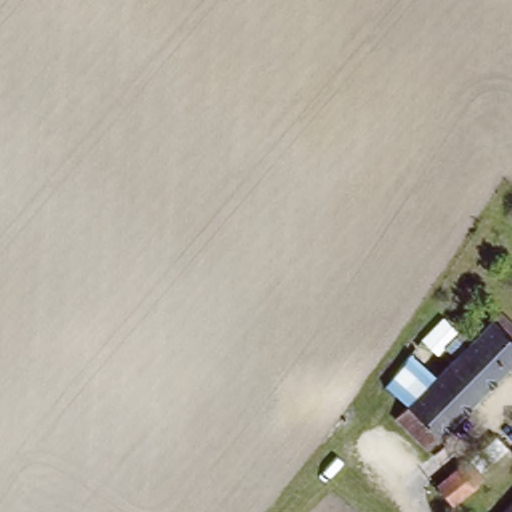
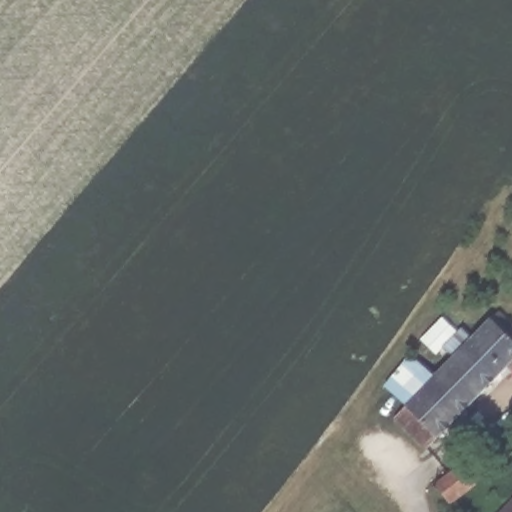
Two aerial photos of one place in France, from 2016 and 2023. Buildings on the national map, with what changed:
unchanged [(413,456),(383,426),(486,323),(512,344),(512,366),(507,362),(413,456)]
unchanged [(462,465),(478,488),(449,509),(431,488),(462,465)]
unchanged [(512,501),(512,512),(501,512),(512,501)]

